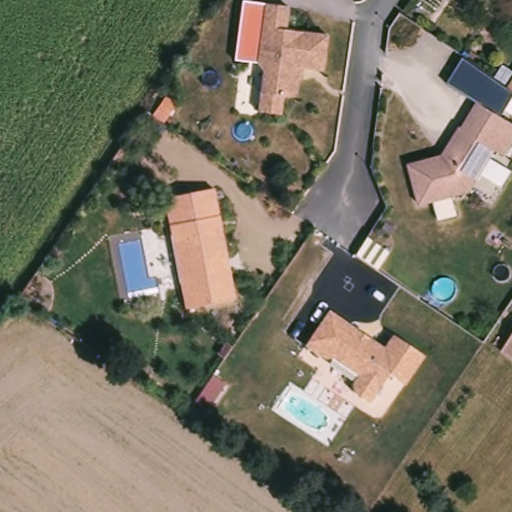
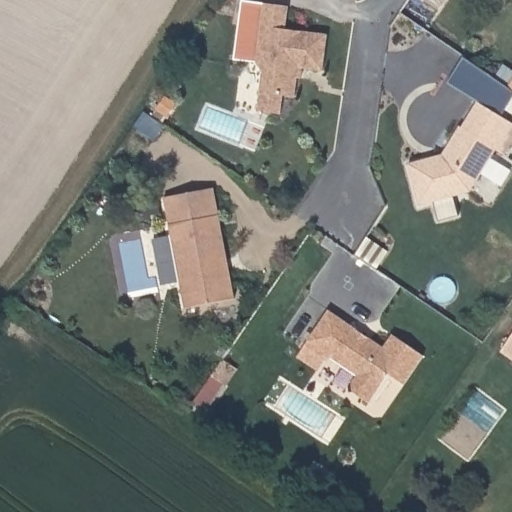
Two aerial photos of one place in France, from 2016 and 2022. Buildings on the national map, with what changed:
unchanged [(290,100),(278,98),(275,117),(253,113),(260,73),(254,65),(263,5),(287,9),(283,32),(325,39),(320,75),(299,71),(297,82),(290,100)]
unchanged [(450,84),(466,60),(495,78),(502,66),(511,71),(502,85),(512,91),(512,101),(502,116),(473,99),(450,84)]
unchanged [(502,85),(512,70),(512,91),(502,85)]
unchanged [(512,122),(512,132),(500,151),(492,146),(467,189),(415,202),(404,161),(438,152),(448,137),(456,123),(458,125),(473,99),(512,122)]
unchanged [(229,303),(180,312),(160,200),(210,192),(217,237),(225,276),(229,303)]
unchanged [(393,333),(425,354),(406,383),(390,372),(370,402),(355,391),(353,383),(358,375),(332,357),(325,359),(305,346),(328,310),(357,329),(370,337),(385,347),(393,333)]
unchanged [(500,352),(503,347),(512,332),(512,359),(500,352)]
unchanged [(201,380),(214,389),(196,415),(184,406),(201,380)]

